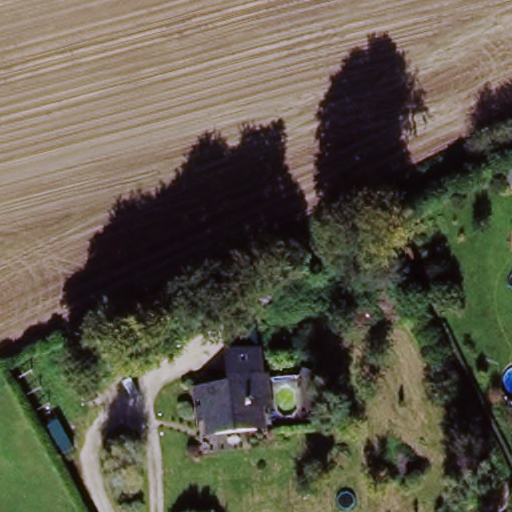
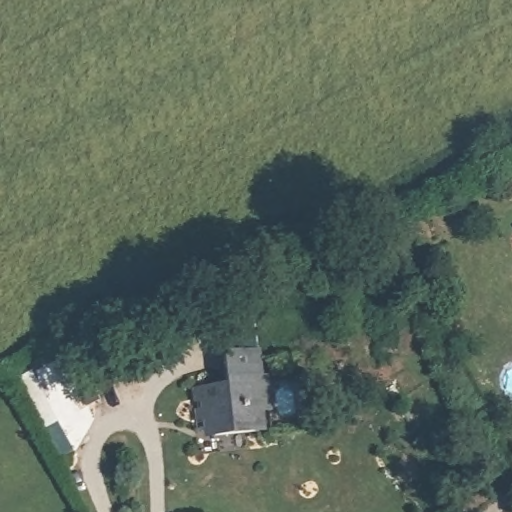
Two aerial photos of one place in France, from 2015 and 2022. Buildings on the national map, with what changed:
unchanged [(197,425),(192,426),(190,399),(220,396),(218,389),(228,388),(260,385),(262,411),(257,411),(260,432),(250,432),(208,437),(198,438),(197,425)]

